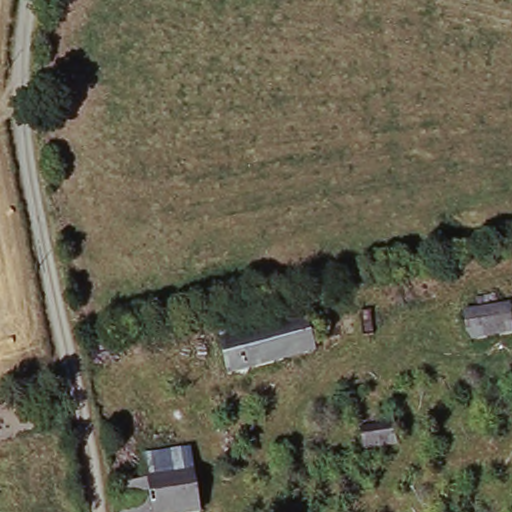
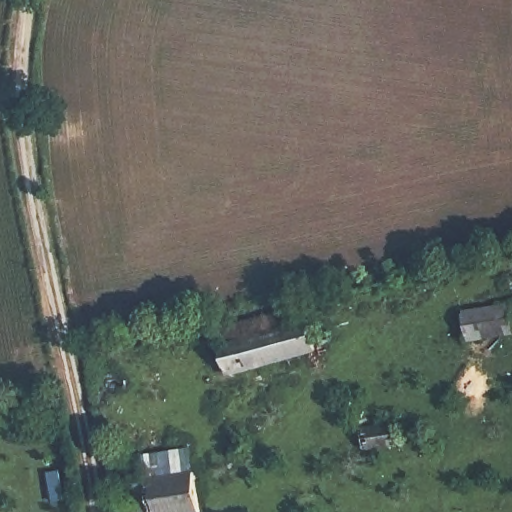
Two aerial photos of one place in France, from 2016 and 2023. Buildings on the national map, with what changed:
unchanged [(309,304),(319,346),(234,367),(224,327),(309,304)]
unchanged [(512,306),(512,335),(476,343),(470,313),(512,306)]
unchanged [(400,424),(401,444),(370,450),(365,434),(400,424)]
unchanged [(145,456),(190,449),(194,473),(153,483),(145,456)]
unchanged [(194,473),(199,512),(150,512),(143,485),(194,473)]
unchanged [(143,485),(150,512),(123,512),(117,490),(143,485)]

